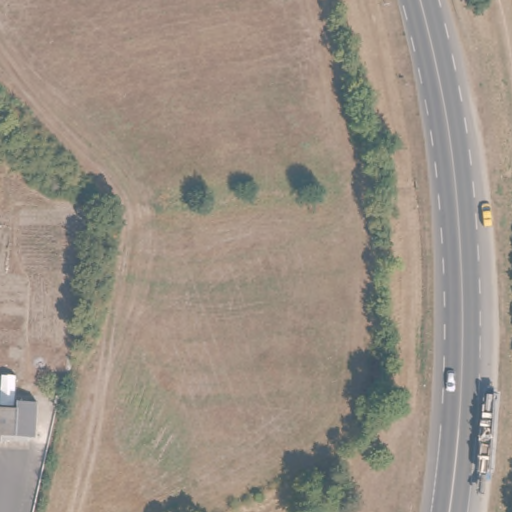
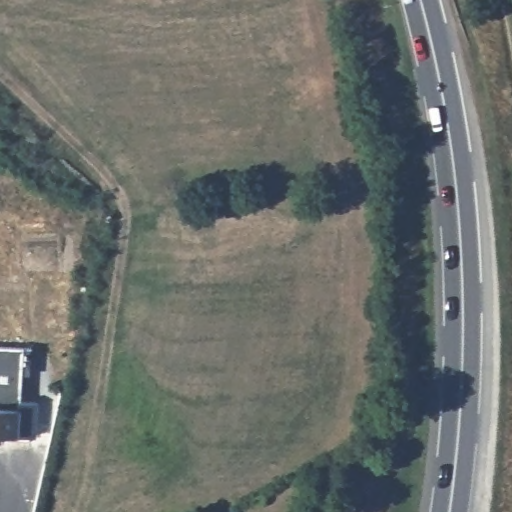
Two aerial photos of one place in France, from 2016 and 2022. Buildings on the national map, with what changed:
new [(17,400),(16,407),(0,407),(0,346),(21,348),(17,400)]
unchanged [(17,400),(39,401),(36,437),(0,435),(0,407),(16,407),(17,400)]

